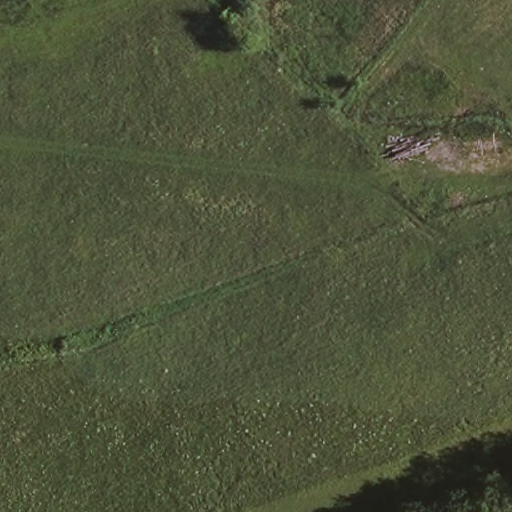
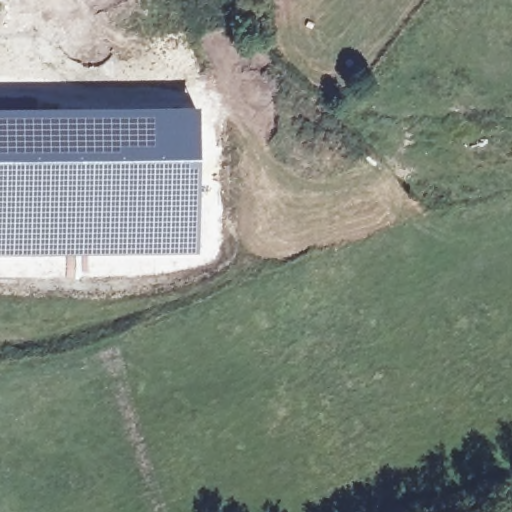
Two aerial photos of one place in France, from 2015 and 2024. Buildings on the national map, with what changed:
new [(64,104),(199,105),(199,156),(197,254),(0,256),(0,105),(64,104)]

